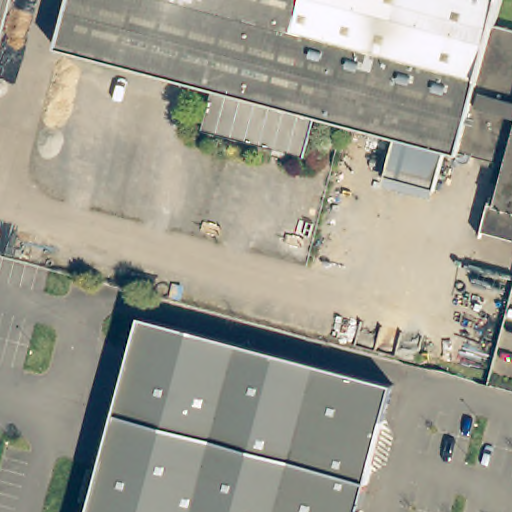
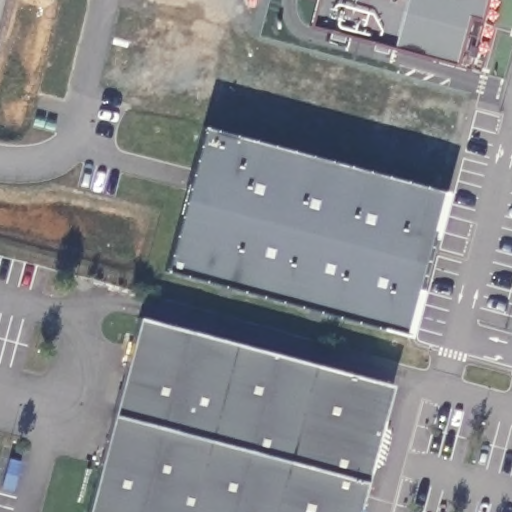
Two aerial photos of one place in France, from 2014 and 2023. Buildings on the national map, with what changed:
demolished [(512,31),(512,243),(479,234),(486,206),(492,207),(504,168),(463,155),(461,160),(444,156),(433,194),(383,182),(394,142),(310,120),(300,159),(199,133),(208,94),(55,50),(70,0),(500,0),(493,25),(512,31)]
new [(469,18),(455,65),(306,28),(313,2),(308,0),(484,0),(479,21),(469,18)]
new [(410,337),(163,269),(202,127),(448,192),(410,337)]
unchanged [(135,322),(390,390),(357,512),(85,512),(135,322)]

